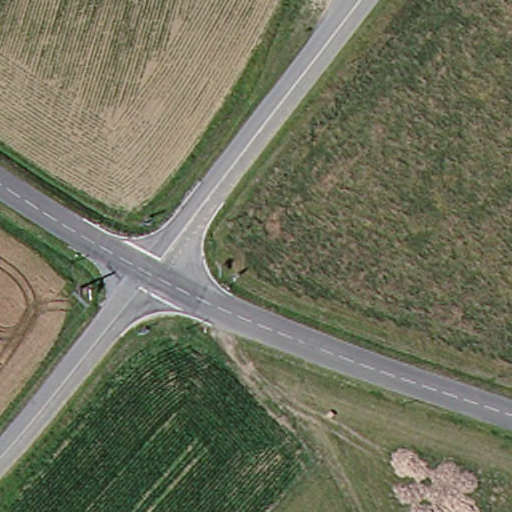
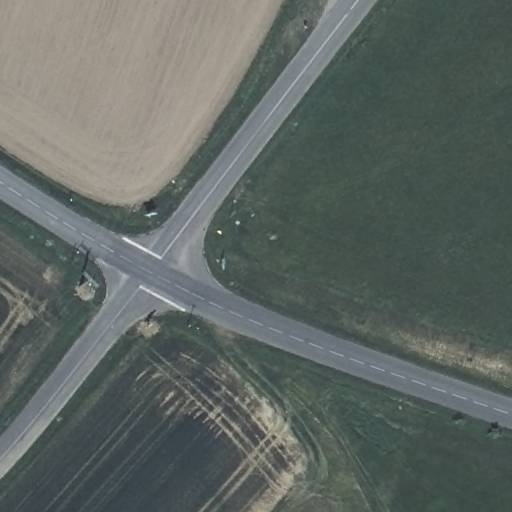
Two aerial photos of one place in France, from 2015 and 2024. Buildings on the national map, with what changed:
unchanged [(169,312),(181,323),(172,334),(157,320),(165,312),(169,312)]

